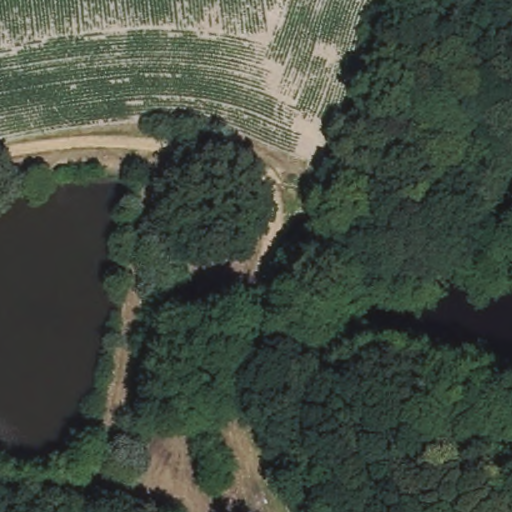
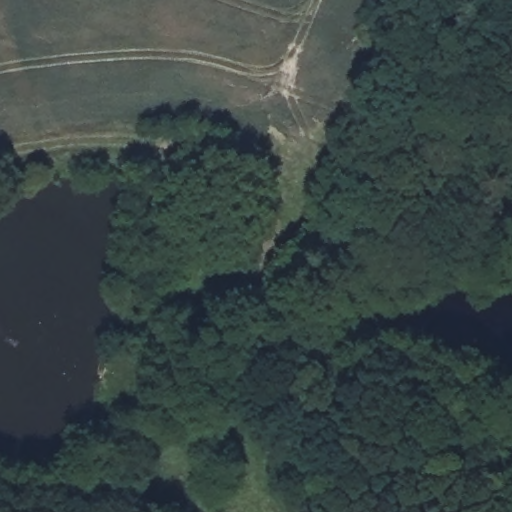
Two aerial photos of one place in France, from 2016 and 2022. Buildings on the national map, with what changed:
[]

